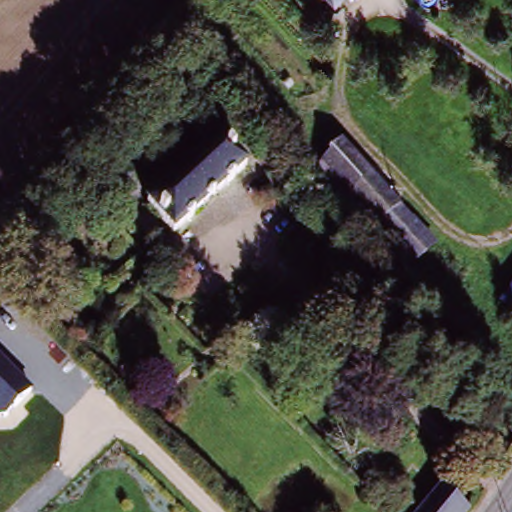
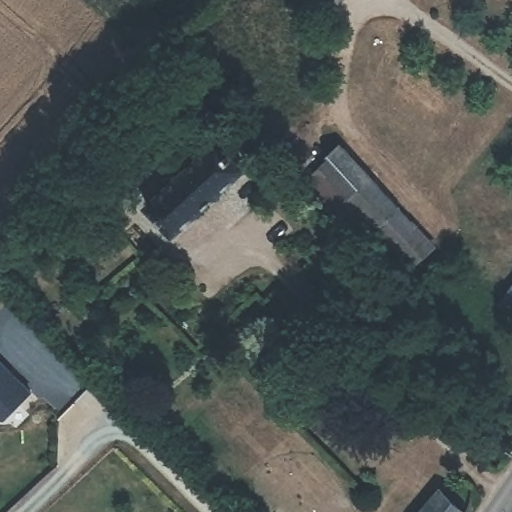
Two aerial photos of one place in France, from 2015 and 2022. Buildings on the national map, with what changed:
unchanged [(201,104),(187,116),(172,102),(185,89),(201,104)]
unchanged [(244,164),(210,196),(172,232),(147,204),(218,136),(244,164)]
unchanged [(377,232),(322,173),(345,153),(398,212),(377,232)]
unchanged [(358,249),(304,189),(322,173),(377,232),(358,249)]
unchanged [(112,192),(96,209),(85,197),(102,181),(112,192)]
unchanged [(432,249),(411,268),(377,232),(398,212),(432,249)]
unchanged [(512,304),(512,321),(504,316),(512,304)]
unchanged [(34,391),(7,421),(0,418),(0,356),(34,391)]
unchanged [(435,495),(456,512),(421,512),(435,495)]

